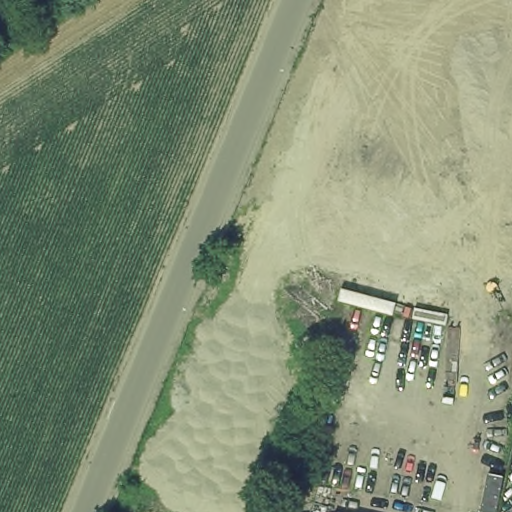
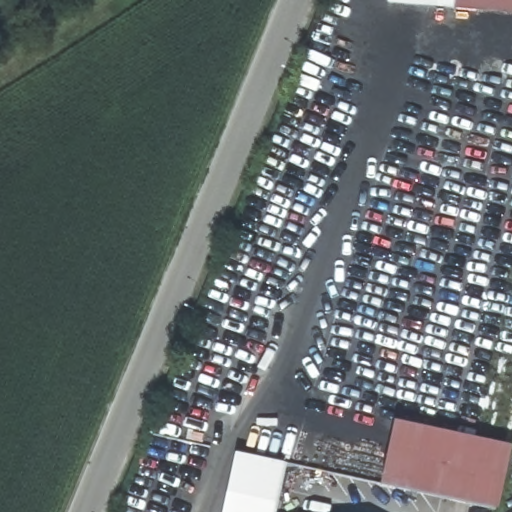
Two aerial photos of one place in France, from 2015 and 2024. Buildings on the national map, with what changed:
new [(512,14),(454,9),(455,0),(512,0),(512,14)]
new [(511,447),(499,512),(382,486),(392,422),(511,447)]
new [(234,452),(288,464),(280,512),(222,512),(234,452)]

